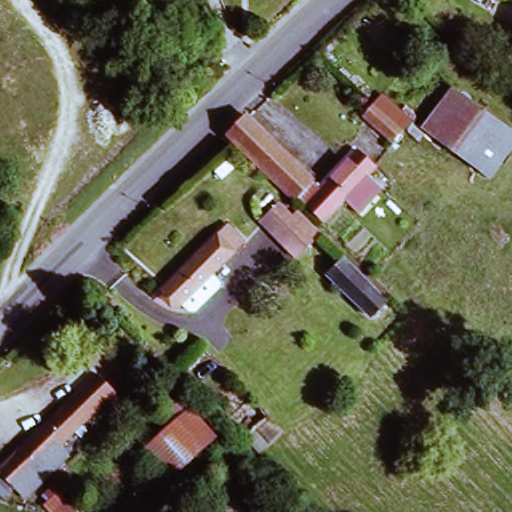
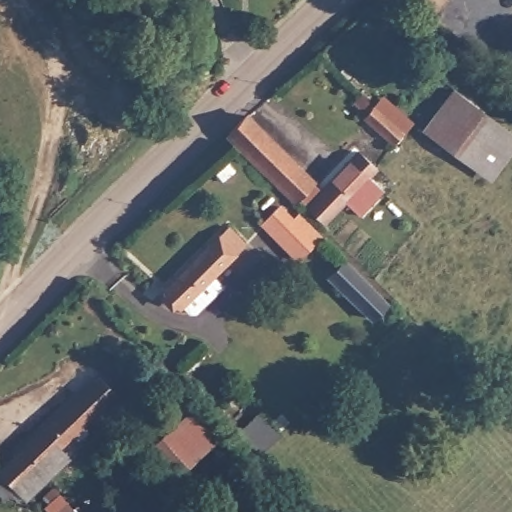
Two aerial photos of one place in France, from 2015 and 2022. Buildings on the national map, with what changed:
unchanged [(427,122),(462,87),(510,137),(475,172),(427,122)]
unchanged [(390,139),(363,116),(376,101),(402,125),(390,139)]
unchanged [(292,196),(235,134),(254,116),(308,179),(292,196)]
unchanged [(324,222),(305,205),(351,154),(370,171),(362,179),(378,194),(358,216),(342,202),(324,222)]
unchanged [(286,232),(287,227),(265,203),(278,192),(318,234),(301,249),(286,232)]
unchanged [(176,302),(161,284),(219,233),(227,226),(242,244),(233,251),(207,273),(218,286),(203,298),(193,287),(176,302)]
unchanged [(352,300),(315,261),(334,242),(390,306),(363,331),(342,308),(352,300)]
unchanged [(22,496),(10,486),(0,494),(0,493),(0,464),(101,370),(115,384),(53,443),(62,457),(22,496)]
unchanged [(162,430),(187,406),(224,446),(198,470),(162,430)]
unchanged [(250,463),(234,442),(245,432),(263,416),(284,435),(250,463)]
unchanged [(45,501),(42,496),(52,483),(78,512),(48,512),(43,507),(45,501)]

